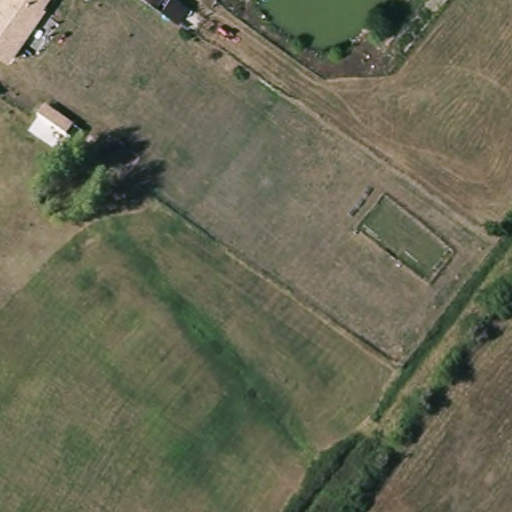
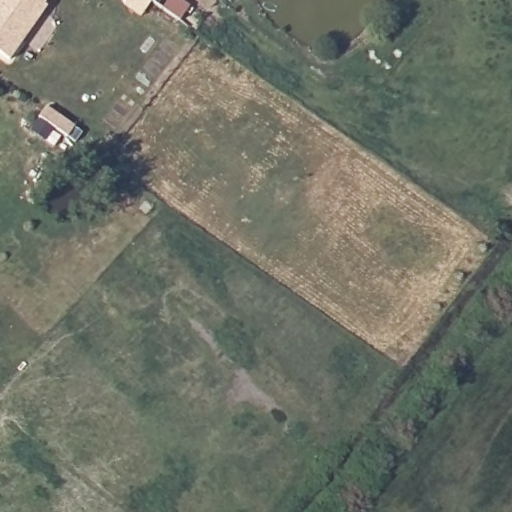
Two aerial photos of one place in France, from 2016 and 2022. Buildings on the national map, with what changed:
unchanged [(37,2),(0,56),(0,0),(34,0),(37,2)]
unchanged [(161,10),(149,0),(188,0),(195,6),(184,24),(161,10)]

